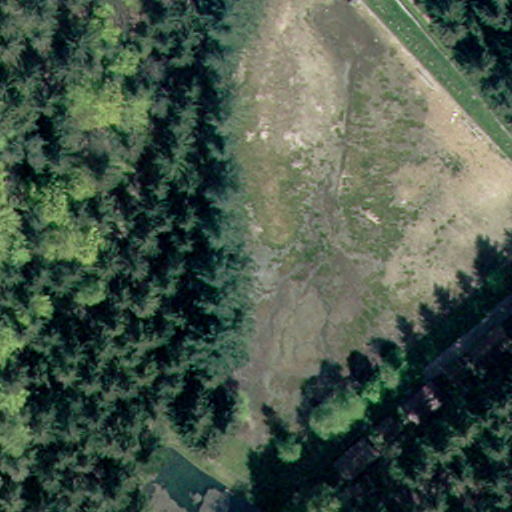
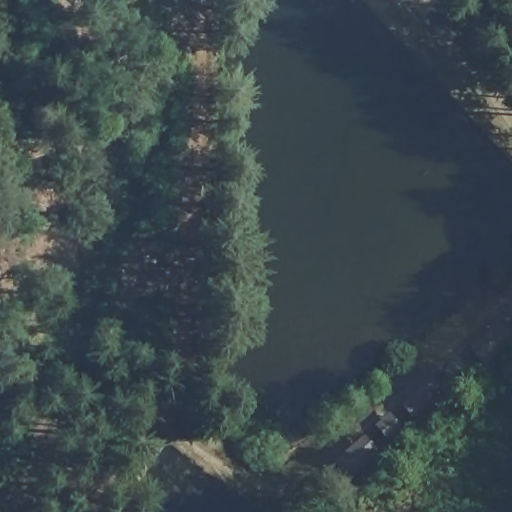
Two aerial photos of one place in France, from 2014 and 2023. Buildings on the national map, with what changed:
unchanged [(512,338),(475,362),(466,345),(499,318),(512,338)]
unchanged [(442,396),(415,416),(405,397),(432,380),(442,396)]
unchanged [(376,455),(345,477),(332,453),(360,433),(376,455)]

